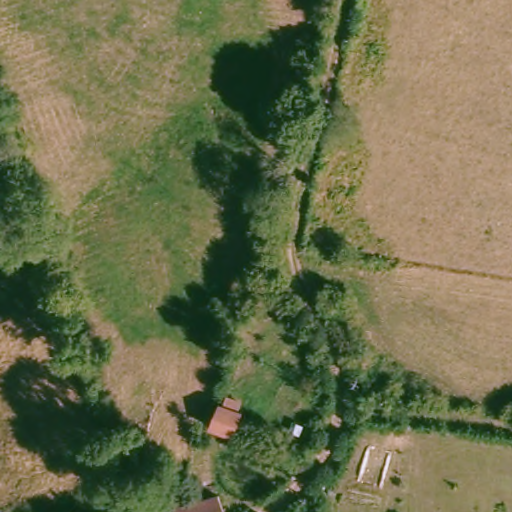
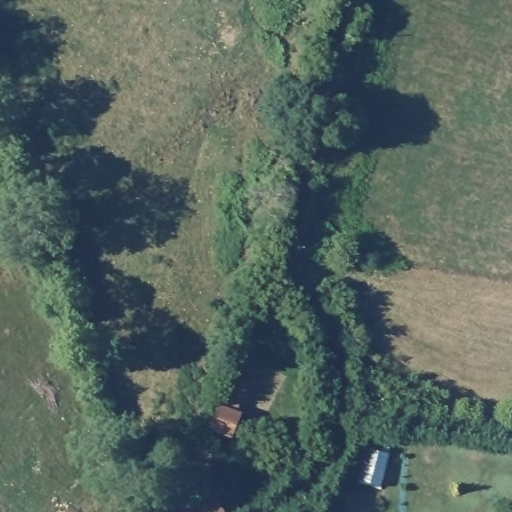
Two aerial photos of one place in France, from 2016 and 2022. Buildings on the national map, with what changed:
unchanged [(245,414),(238,434),(214,426),(222,406),(245,414)]
unchanged [(178,506),(222,500),(228,512),(179,512),(178,506)]

